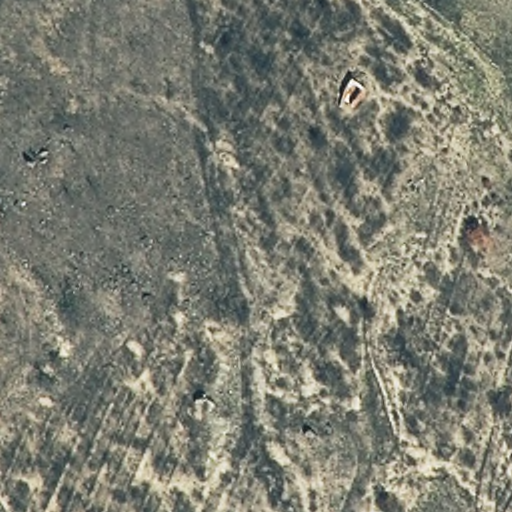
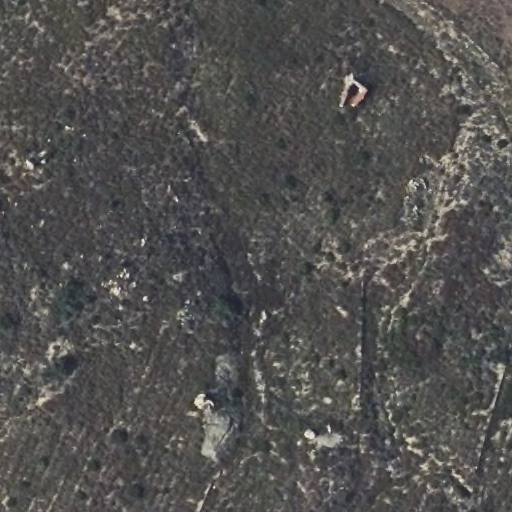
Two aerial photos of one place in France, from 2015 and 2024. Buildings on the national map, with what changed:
unchanged [(349,89),(366,97),(355,118),(340,107),(349,89)]

